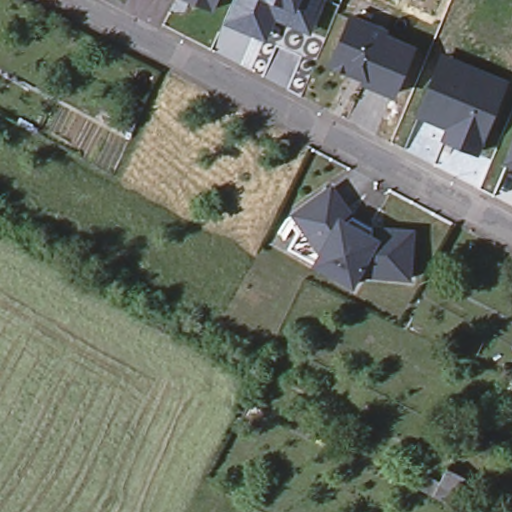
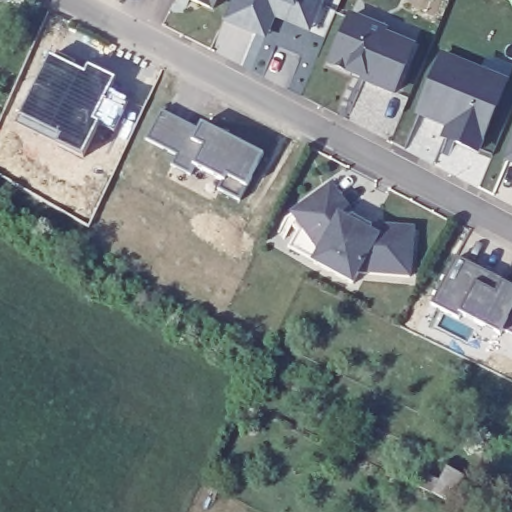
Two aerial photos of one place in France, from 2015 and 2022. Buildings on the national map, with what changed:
unchanged [(210,11),(184,0),(214,0),(210,11)]
unchanged [(307,32),(272,17),(263,39),(222,22),(232,0),(321,0),(307,32)]
unchanged [(392,90),(362,78),(364,72),(350,66),(350,69),(329,61),(348,14),(383,28),(382,32),(412,44),(392,90)]
unchanged [(503,78),(498,90),(475,148),(442,134),(447,122),(416,110),(435,64),(440,52),(503,78)]
new [(83,71),(87,65),(112,78),(93,117),(99,121),(83,154),(56,140),(60,134),(19,113),(48,54),(83,71)]
new [(198,128),(201,123),(263,155),(247,187),(240,201),(217,190),(222,181),(195,166),(190,175),(171,166),(176,155),(146,140),(160,110),(198,128)]
unchanged [(505,157),(512,139),(512,160),(505,157)]
unchanged [(295,230),(285,216),(290,212),(328,184),(350,211),(370,226),(410,227),(408,274),(355,272),(350,281),(313,259),(287,242),(295,230)]
new [(501,326),(498,331),(459,311),(457,315),(430,302),(453,257),(455,254),(501,279),(500,280),(500,279),(512,286),(512,332),(501,326)]
unchanged [(423,475),(437,481),(445,466),(462,474),(448,501),(432,492),(417,485),(423,475)]

